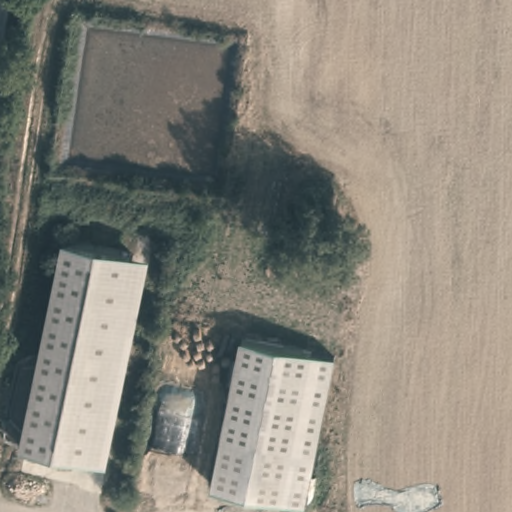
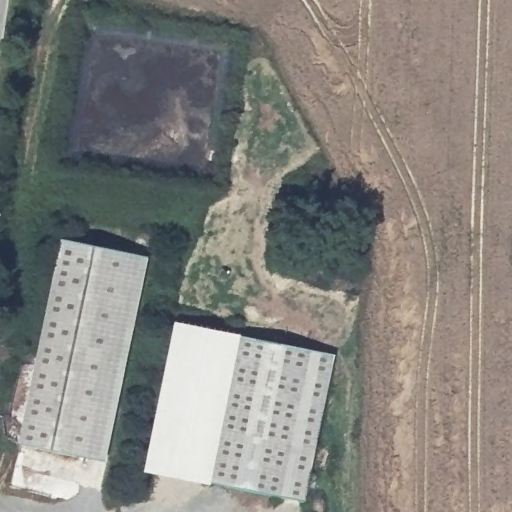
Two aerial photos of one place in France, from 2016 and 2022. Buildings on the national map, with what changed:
unchanged [(29,442),(74,234),(141,249),(97,456),(29,442)]
new [(146,471),(176,325),(240,338),(211,484),(146,471)]
unchanged [(240,338),(334,358),(305,502),(211,484),(240,338)]

